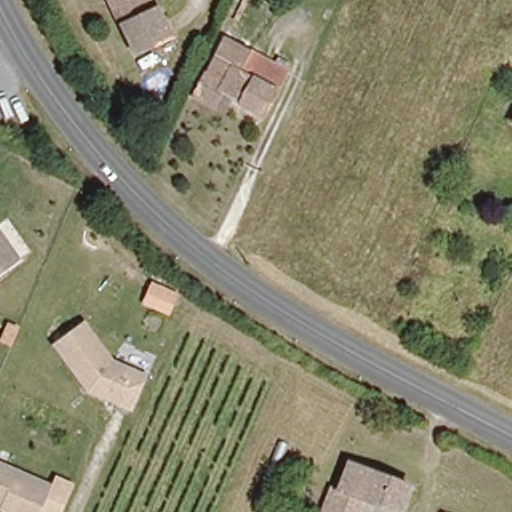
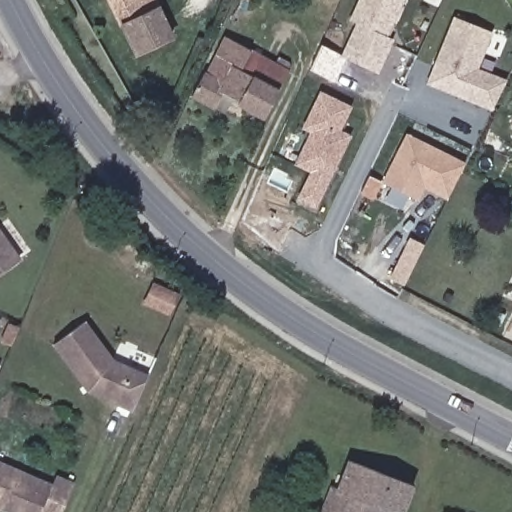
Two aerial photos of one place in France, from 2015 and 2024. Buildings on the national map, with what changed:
unchanged [(136,56),(111,0),(156,0),(174,40),(136,56)]
new [(393,40),(379,71),(344,56),(359,23),(352,20),(361,0),(403,0),(393,23),(396,24),(389,38),(393,40)]
new [(494,111),(484,108),(429,85),(457,17),(494,33),(479,70),(497,77),(509,83),(494,111)]
unchanged [(278,64),(282,52),(299,60),(267,118),(218,93),(211,106),(193,96),(223,39),(278,64)]
new [(314,132),(305,128),(322,93),(352,108),(340,131),(351,136),(317,207),(300,199),(314,173),(298,164),(314,132)]
unchanged [(509,126),(512,118),(512,127),(509,126)]
new [(409,135),(467,165),(451,199),(425,187),(419,200),(384,184),(409,135)]
unchanged [(0,278),(0,228),(24,262),(0,278)]
unchanged [(140,397),(131,415),(96,400),(86,395),(53,348),(83,326),(112,365),(147,381),(140,397)]
unchanged [(0,463),(55,489),(44,512),(11,512),(3,509),(1,512),(0,512),(0,463)]
unchanged [(345,467),(353,471),(355,465),(413,489),(403,512),(386,512),(364,502),(358,512),(327,512),(345,467)]
unchanged [(446,507),(458,512),(444,512),(446,507)]

